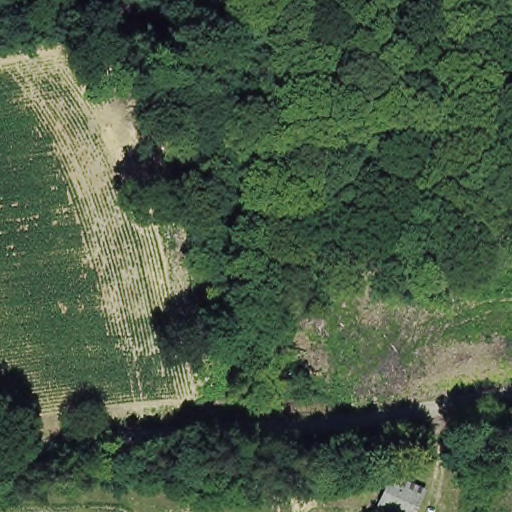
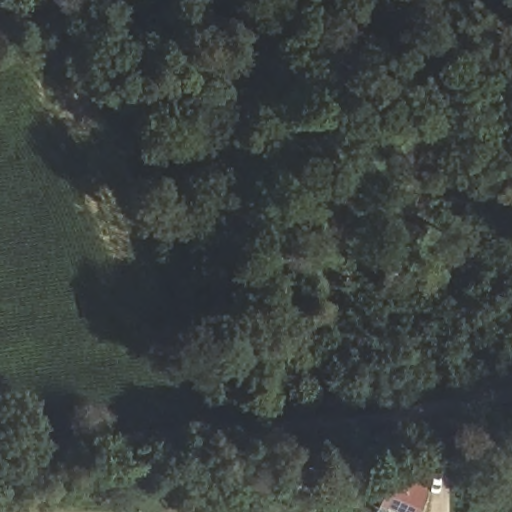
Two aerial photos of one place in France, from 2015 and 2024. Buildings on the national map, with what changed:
unchanged [(414,509),(381,495),(390,476),(422,491),(414,509)]

